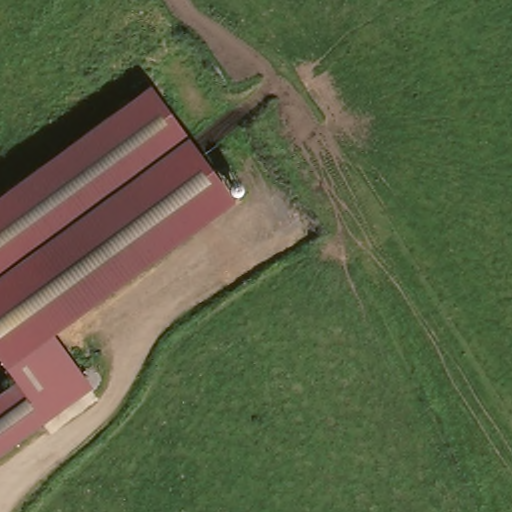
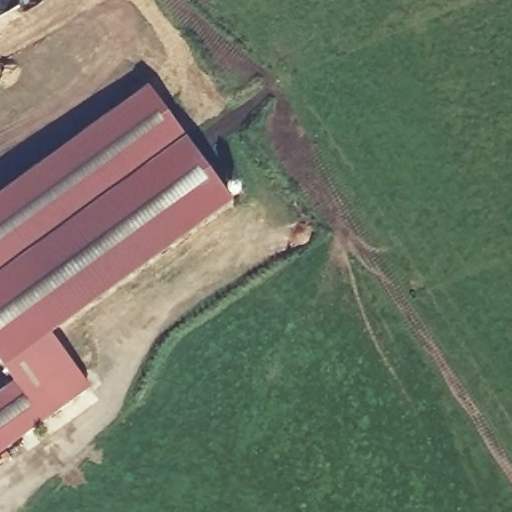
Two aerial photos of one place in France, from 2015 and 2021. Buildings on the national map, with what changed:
unchanged [(0,368),(0,194),(151,84),(230,199),(49,330),(99,398),(45,437),(36,422),(0,449),(0,389),(10,382),(0,368)]

